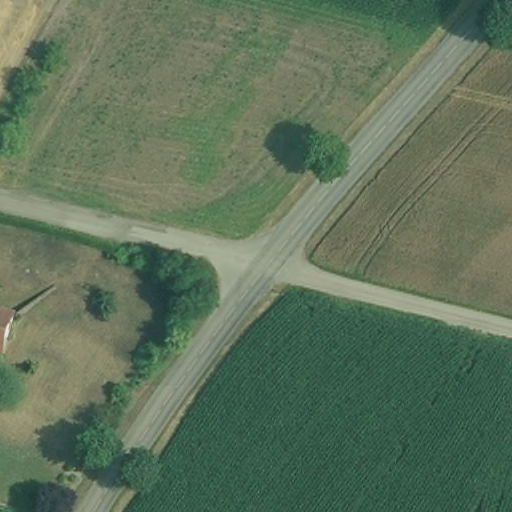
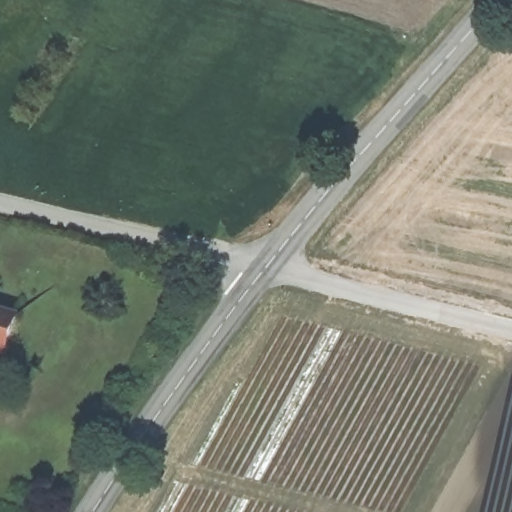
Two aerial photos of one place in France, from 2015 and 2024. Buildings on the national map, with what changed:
unchanged [(10,353),(1,350),(0,352),(0,310),(22,316),(10,353)]

